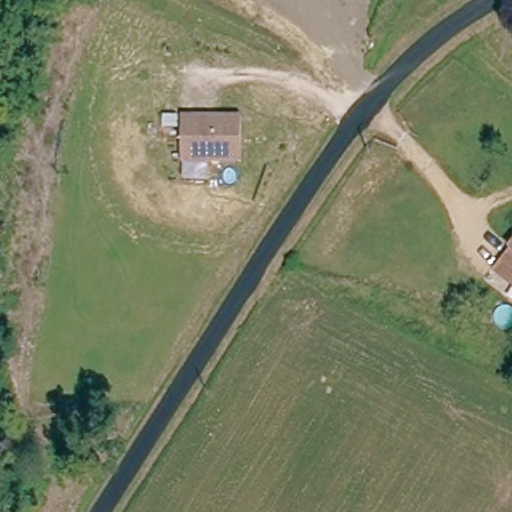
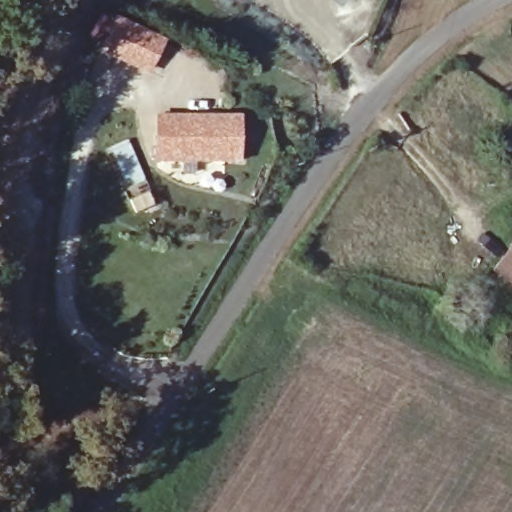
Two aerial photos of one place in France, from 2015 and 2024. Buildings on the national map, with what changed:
new [(342,3),(337,0),(344,0),(342,3)]
new [(167,40),(150,73),(100,49),(117,15),(167,40)]
unchanged [(241,161),(182,162),(181,115),(242,114),(241,161)]
new [(182,162),(157,161),(156,116),(181,115),(182,162)]

